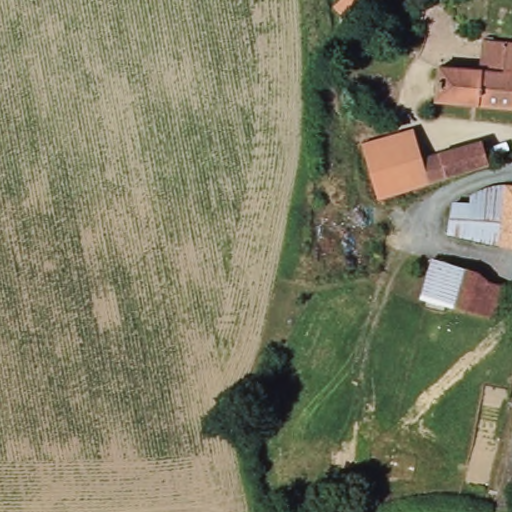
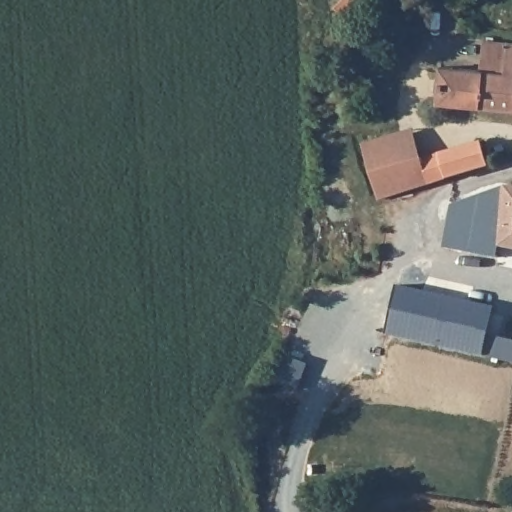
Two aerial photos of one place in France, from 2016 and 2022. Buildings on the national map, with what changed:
unchanged [(436,100),(441,69),(483,72),(485,42),(508,43),(512,44),(512,106),(436,100)]
unchanged [(389,170),(394,195),(377,200),(360,143),(412,129),(423,160),(389,170)]
unchanged [(493,140),(500,163),(460,175),(453,152),(493,140)]
unchanged [(453,152),(460,175),(394,195),(389,170),(453,152)]
unchanged [(474,208),(475,198),(493,190),(500,188),(512,188),(512,249),(450,237),(455,208),(474,208)]
demolished [(455,269),(454,274),(444,306),(436,303),(420,298),(432,262),(455,269)]
demolished [(506,288),(497,323),(463,312),(473,279),(506,288)]
new [(494,305),(483,354),(387,332),(397,284),(494,305)]

